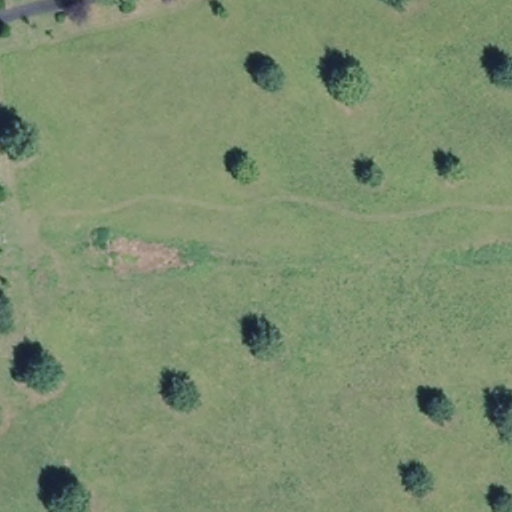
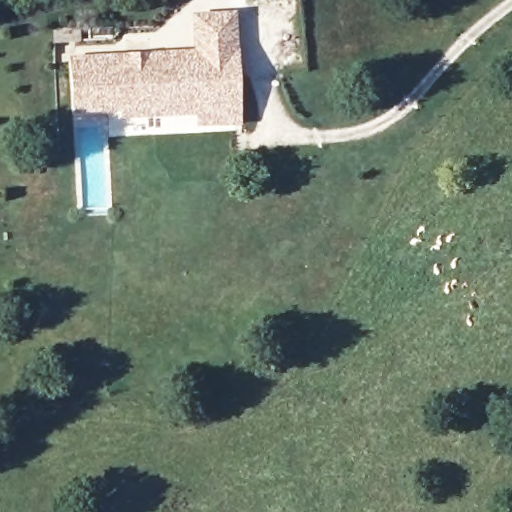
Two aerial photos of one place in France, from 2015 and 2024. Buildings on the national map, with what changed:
new [(193,49),(191,14),(236,11),(241,124),(196,126),(196,115),(120,119),(119,111),(72,114),(69,56),(193,49)]

